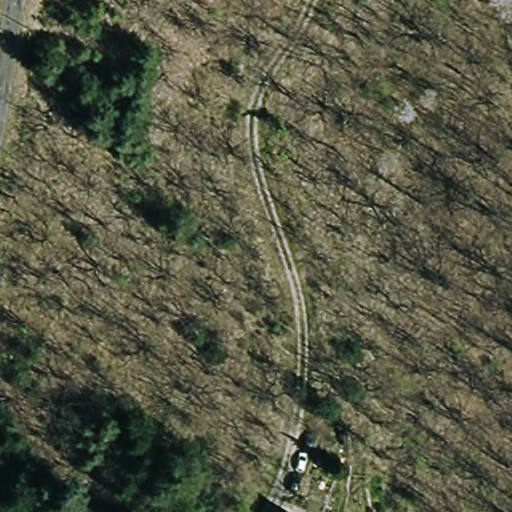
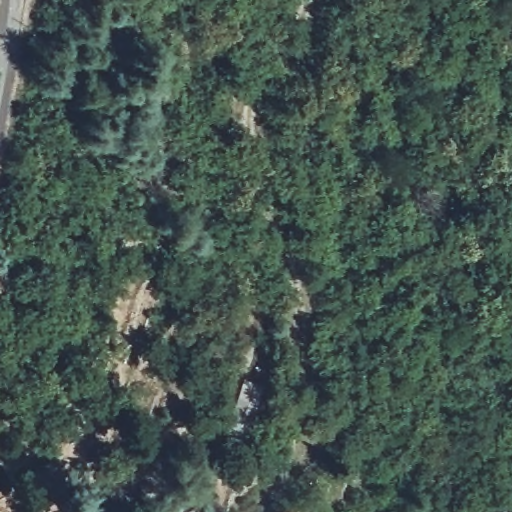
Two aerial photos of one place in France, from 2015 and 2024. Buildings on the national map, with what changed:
unchanged [(286,503),(299,512),(277,512),(285,504),(286,503)]

